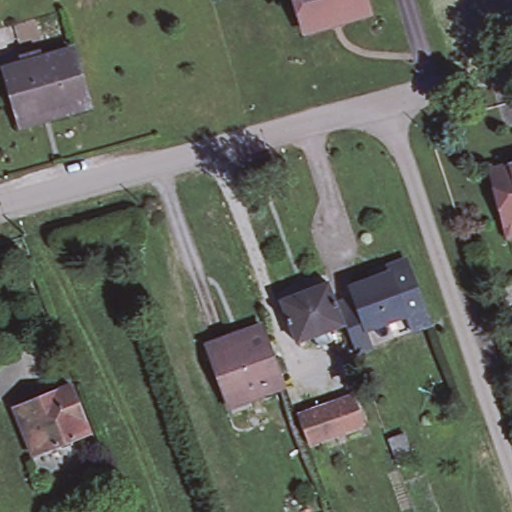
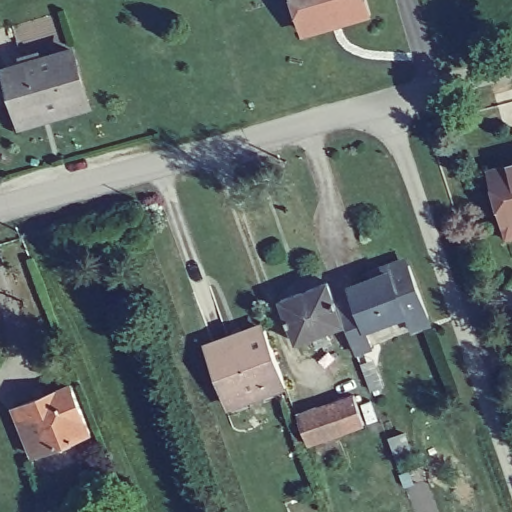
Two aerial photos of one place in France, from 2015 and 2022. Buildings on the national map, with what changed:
unchanged [(366,15),(303,33),(294,0),(362,0),(366,15)]
unchanged [(17,127),(15,118),(1,70),(20,64),(18,57),(31,53),(34,60),(69,50),(81,99),(84,108),(17,127)]
unchanged [(498,239),(495,225),(480,172),(512,164),(512,235),(498,239)]
unchanged [(357,357),(338,306),(355,300),(350,290),(373,281),(371,275),(391,267),(404,264),(410,267),(427,311),(433,327),(425,330),(411,334),(406,319),(367,333),(373,351),(357,357)]
unchanged [(328,285),(343,327),(296,344),(281,302),(328,285)]
unchanged [(216,399),(197,346),(223,336),(225,342),(256,330),(276,385),(240,400),(218,408),(216,399)]
unchanged [(60,391),(81,438),(22,460),(4,413),(60,391)]
unchanged [(292,421),(348,401),(359,430),(303,451),(292,421)]

